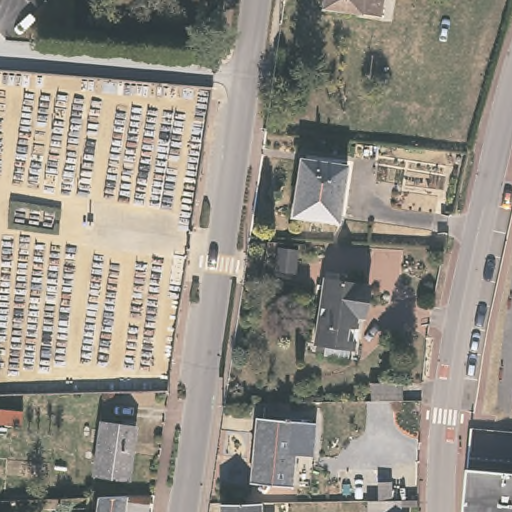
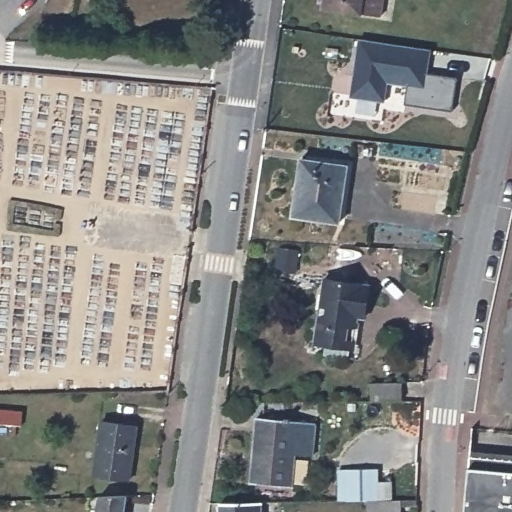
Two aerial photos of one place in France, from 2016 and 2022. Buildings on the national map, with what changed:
unchanged [(323,8),(324,0),(383,0),(381,16),(323,8)]
new [(453,111),(403,104),(405,85),(386,82),(384,102),(350,97),(359,40),(430,50),(427,73),(457,77),(453,111)]
unchanged [(347,166),(340,223),(298,217),(302,187),(297,186),(301,160),(347,166)]
unchanged [(366,307),(364,319),(355,318),(352,349),(350,349),(348,360),(323,357),(324,346),(315,344),(323,280),(368,287),(366,307)]
unchanged [(403,398),(372,398),(372,384),(403,383),(403,398)]
unchanged [(136,424),(129,480),(95,475),(103,419),(136,424)]
unchanged [(312,424),(309,445),(296,443),(291,488),(251,484),(257,419),(312,424)]
unchanged [(469,455),(470,443),(472,428),(498,430),(512,432),(512,459),(469,455)]
unchanged [(512,459),(512,512),(464,512),(465,509),(469,455),(512,459)]
new [(401,512),(368,512),(368,500),(336,501),(336,468),(378,468),(379,483),(391,482),(392,500),(401,500),(401,512)]
demolished [(401,512),(368,512),(368,500),(379,500),(379,483),(391,482),(392,500),(401,500),(401,512)]
unchanged [(99,501),(126,500),(124,512),(97,512),(99,501)]
unchanged [(417,505),(412,505),(412,500),(416,500),(417,505)]
unchanged [(261,512),(221,512),(221,503),(261,502),(261,512)]

